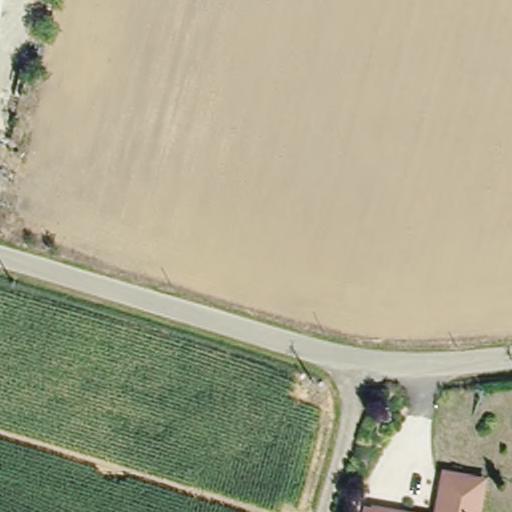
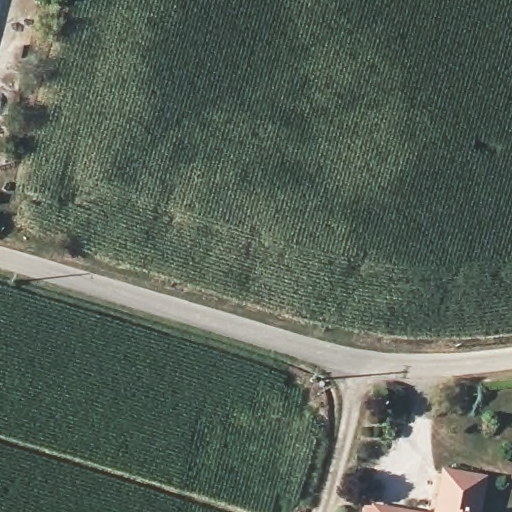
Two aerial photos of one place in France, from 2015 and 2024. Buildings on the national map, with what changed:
unchanged [(438,465),(480,471),(473,509),(481,512),(431,512),(438,465)]
unchanged [(358,501),(431,512),(357,512),(358,501)]

